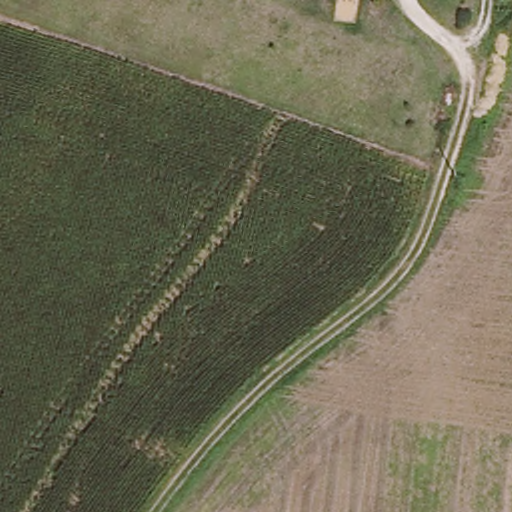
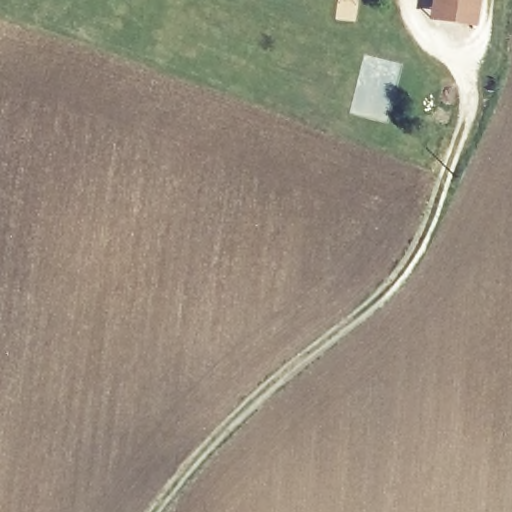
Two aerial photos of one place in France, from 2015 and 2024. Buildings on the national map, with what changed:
new [(476,27),(429,19),(432,0),(480,0),(476,27)]

